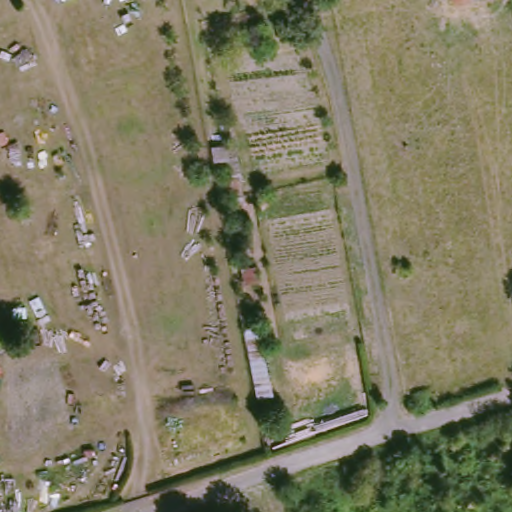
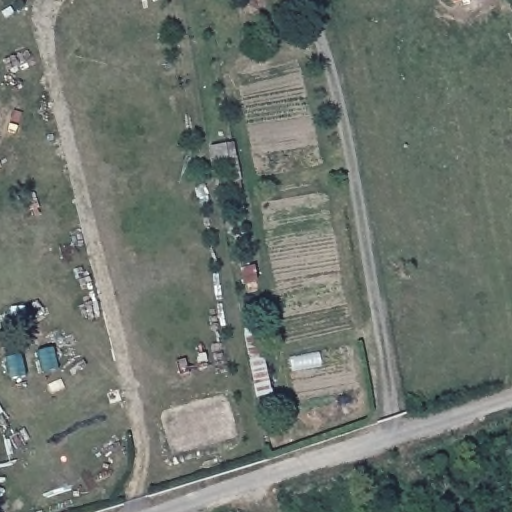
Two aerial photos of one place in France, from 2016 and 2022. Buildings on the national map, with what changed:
unchanged [(450,7),(450,0),(482,0),(482,1),(450,7)]
unchanged [(263,325),(275,397),(255,401),(244,328),(263,325)]

